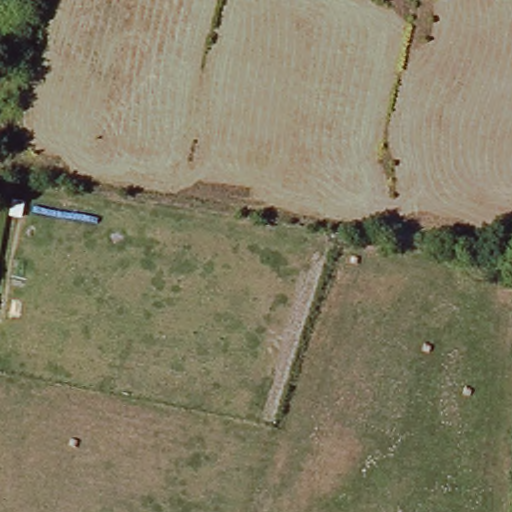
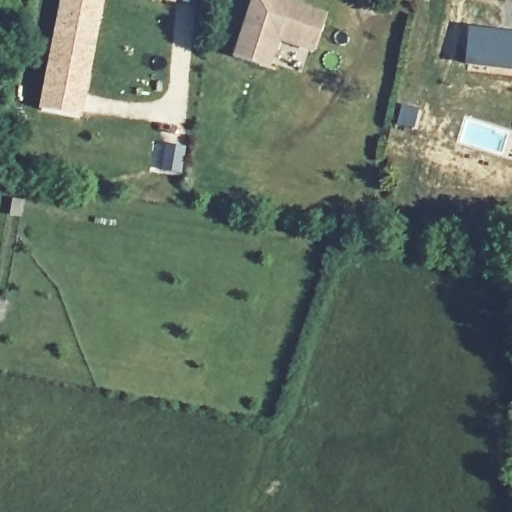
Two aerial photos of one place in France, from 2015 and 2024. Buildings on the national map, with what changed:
new [(104,0),(90,78),(80,121),(36,111),(58,0),(104,0)]
new [(272,0),(320,16),(309,51),(272,39),(262,69),(228,57),(247,0),(272,0)]
new [(468,25),(512,31),(512,71),(463,66),(468,25)]
new [(155,141),(186,146),(180,175),(149,168),(155,141)]

